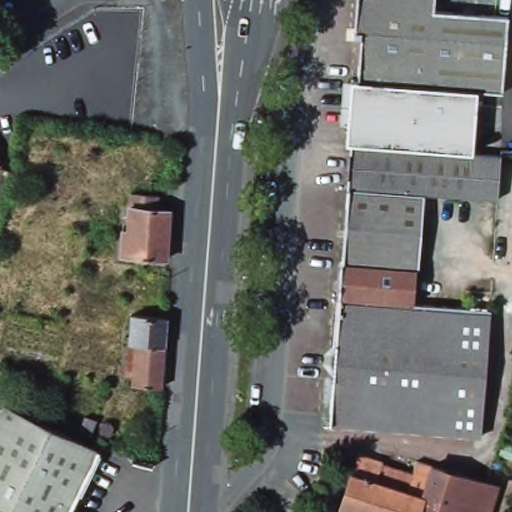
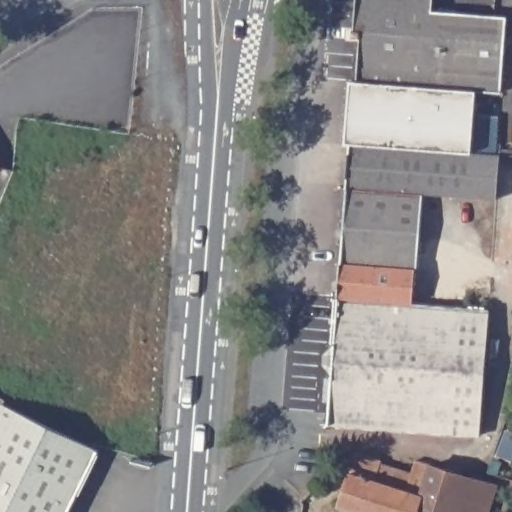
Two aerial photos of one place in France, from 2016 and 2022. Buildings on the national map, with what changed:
unchanged [(350,0),(427,0),(426,10),(501,15),(497,92),(474,90),(471,90),(396,85),(350,81),(353,39),(347,30),(350,0)]
unchanged [(343,81),(350,81),(396,85),(471,90),(467,153),(345,145),(340,144),(343,81)]
unchanged [(345,145),(467,153),(471,153),(496,155),(493,199),(419,194),(341,190),(345,145)]
unchanged [(341,190),(419,194),(414,270),(411,270),(336,265),(341,190)]
demolished [(134,215),(135,202),(162,205),(162,217),(172,218),(170,266),(130,263),(131,245),(128,239),(131,239),(134,215)]
unchanged [(336,265),(411,270),(408,305),(386,304),(334,300),(336,265)]
unchanged [(327,358),(331,354),(334,300),(386,304),(408,305),(455,308),(485,310),(476,437),(347,429),(326,428),(330,373),(326,367),(327,358)]
demolished [(130,319),(167,321),(161,390),(131,388),(133,363),(135,347),(128,346),(130,319)]
unchanged [(100,448),(69,512),(0,512),(0,404),(2,400),(100,448)]
unchanged [(350,471),(352,470),(357,453),(381,460),(380,462),(375,478),(382,481),(378,492),(392,496),(388,512),(369,512),(340,502),(350,471)]
unchanged [(410,472),(415,460),(462,474),(457,493),(426,485),(417,512),(388,512),(392,496),(378,492),(382,481),(375,478),(380,462),(410,472)]
unchanged [(457,493),(462,474),(499,486),(491,512),(417,512),(426,485),(457,493)]

